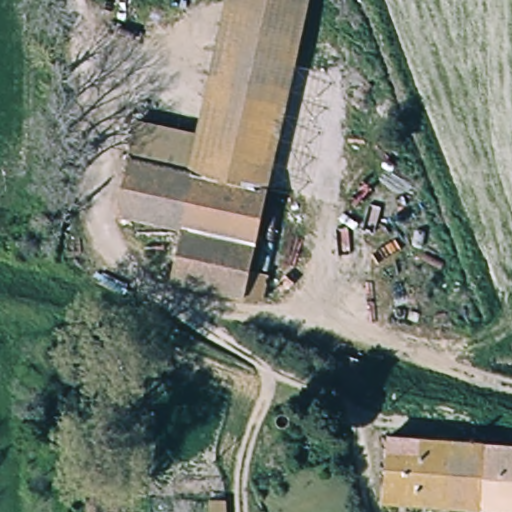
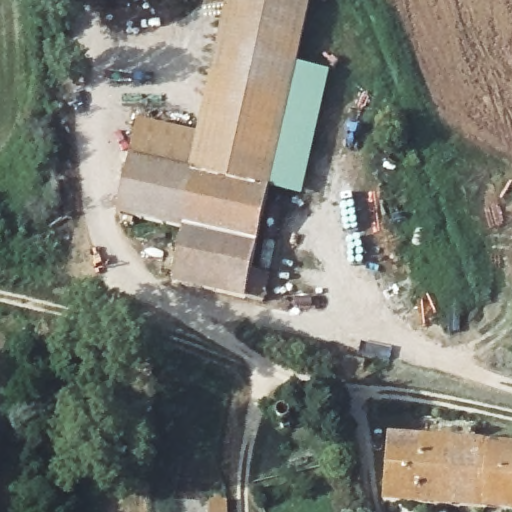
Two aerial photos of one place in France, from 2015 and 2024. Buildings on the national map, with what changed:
unchanged [(258,280),(250,309),(155,285),(169,227),(112,213),(136,121),(196,136),(227,14),(231,0),(315,0),(276,149),(243,276),(258,280)]
new [(303,198),(266,189),(276,149),(298,66),(331,73),(303,198)]
unchanged [(301,403),(298,417),(281,415),(278,427),(271,425),(264,420),(261,412),(261,410),(263,401),(268,395),(276,390),(284,390),(283,400),(301,403)]
unchanged [(444,512),(384,508),(388,440),(512,449),(512,512),(444,512)]
unchanged [(228,512),(207,512),(208,502),(228,502),(228,512)]

